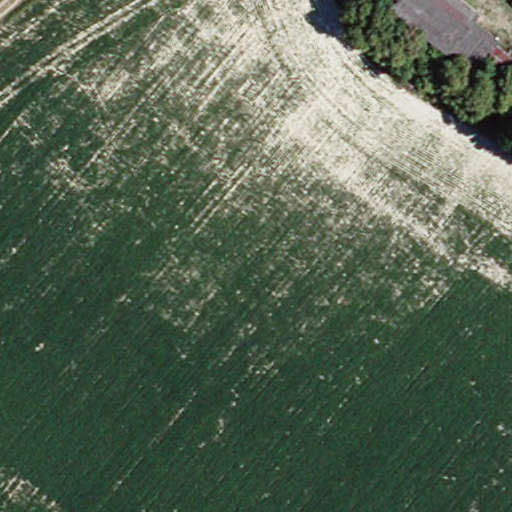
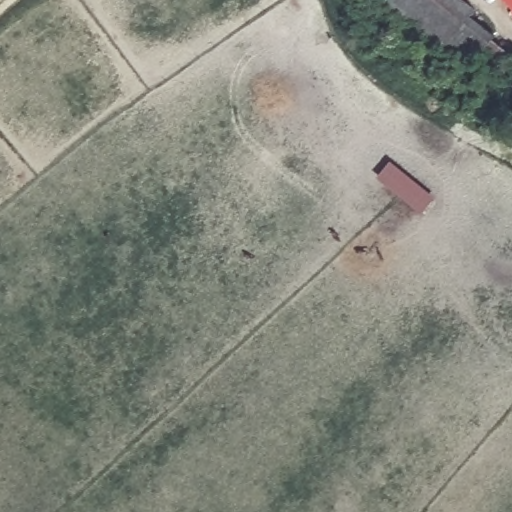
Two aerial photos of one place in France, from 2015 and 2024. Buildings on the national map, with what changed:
unchanged [(471,62),(468,65),(466,68),(385,5),(388,0),(458,0),(472,11),(467,17),(491,37),(489,39),(512,58),(512,59),(495,81),(471,62)]
new [(377,181),(389,162),(436,195),(424,212),(377,181)]

